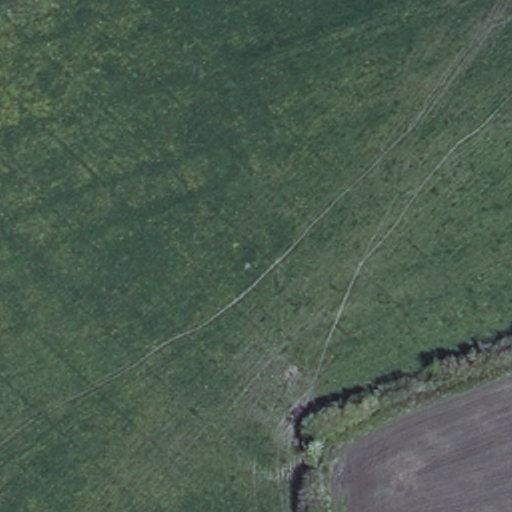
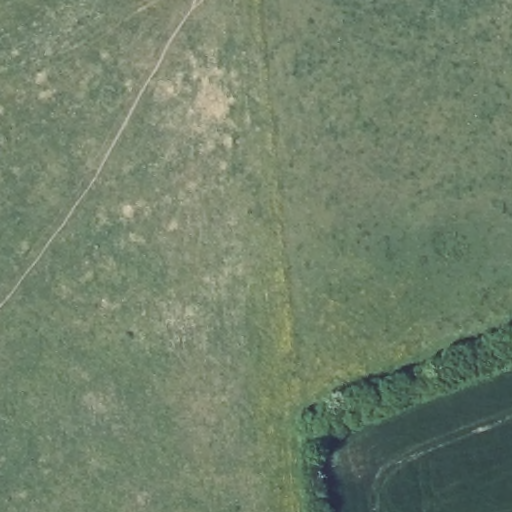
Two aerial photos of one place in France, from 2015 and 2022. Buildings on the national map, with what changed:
[]

